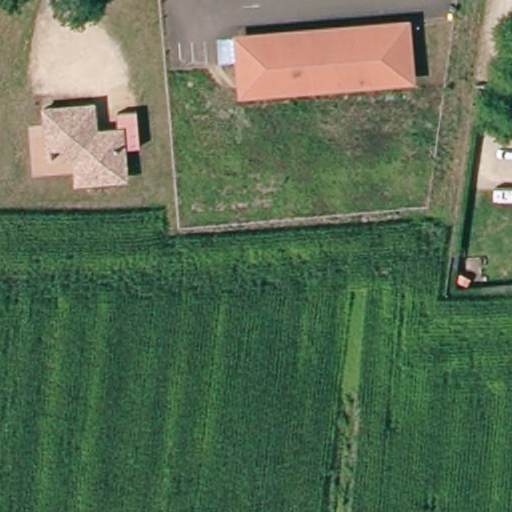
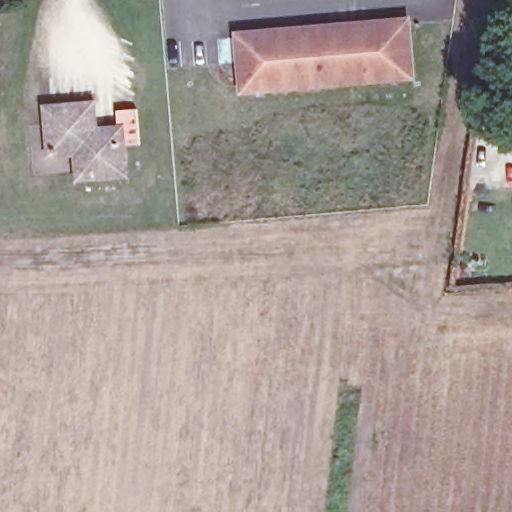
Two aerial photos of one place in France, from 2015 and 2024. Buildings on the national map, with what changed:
unchanged [(415,78),(239,94),(232,32),(410,14),(415,78)]
unchanged [(117,110),(137,109),(140,144),(122,146),(124,173),(81,176),(79,150),(56,152),(56,155),(49,156),(49,148),(51,148),(49,113),(45,113),(45,106),(52,105),(53,108),(87,105),(87,102),(95,102),(95,109),(92,110),(94,131),(101,131),(120,129),(117,110)]

